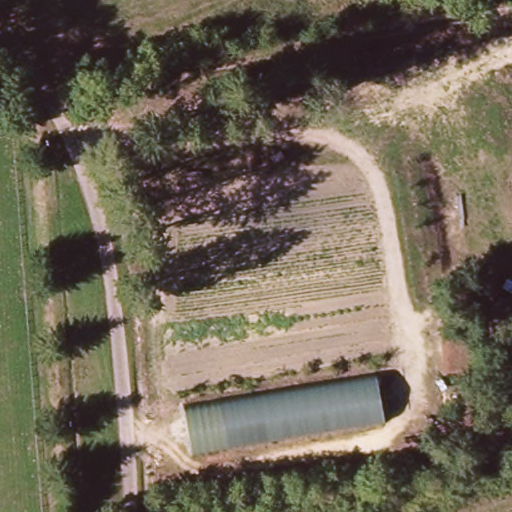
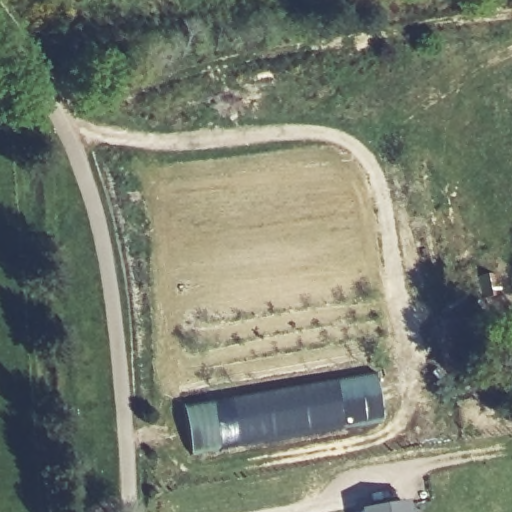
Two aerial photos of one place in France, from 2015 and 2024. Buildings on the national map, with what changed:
unchanged [(236,170),(238,184),(193,191),(189,179),(236,170)]
unchanged [(376,373),(389,427),(191,451),(183,400),(376,373)]
new [(407,501),(410,512),(362,512),(361,509),(407,501)]

